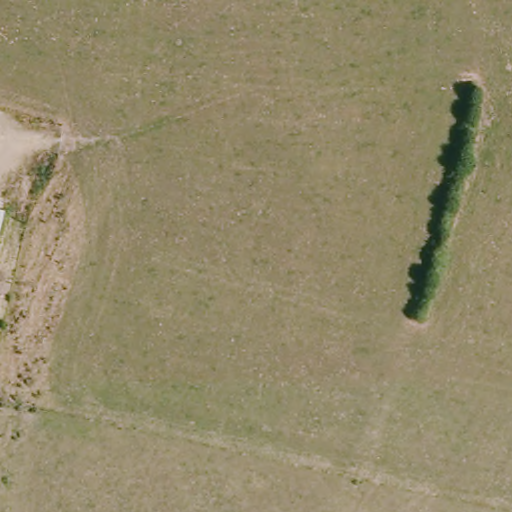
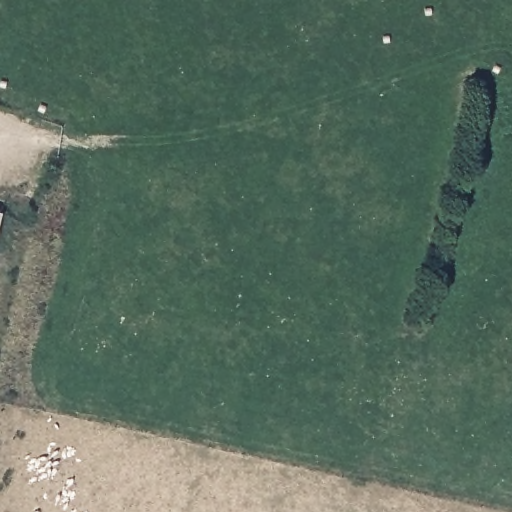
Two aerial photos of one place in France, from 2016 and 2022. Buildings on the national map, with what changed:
unchanged [(13,206),(0,258),(0,204),(13,206)]

